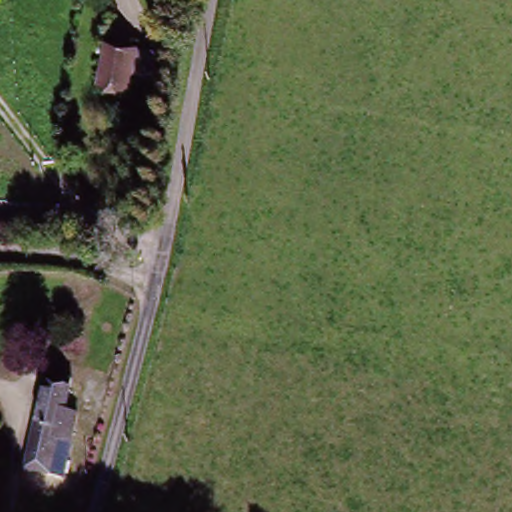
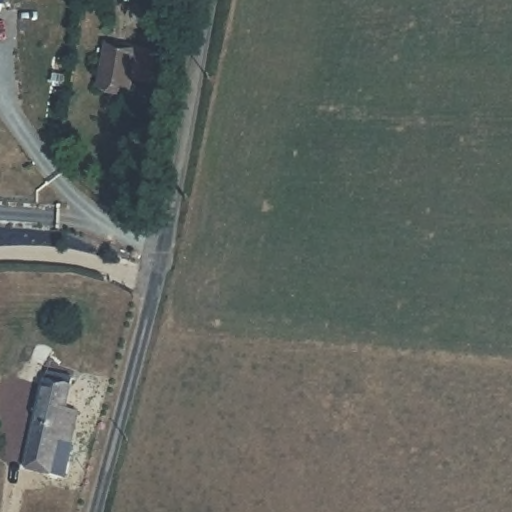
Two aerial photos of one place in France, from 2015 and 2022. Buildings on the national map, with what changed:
unchanged [(134,56),(128,104),(94,99),(101,51),(134,56)]
unchanged [(64,474),(26,464),(46,380),(74,385),(66,413),(78,419),(64,474)]

